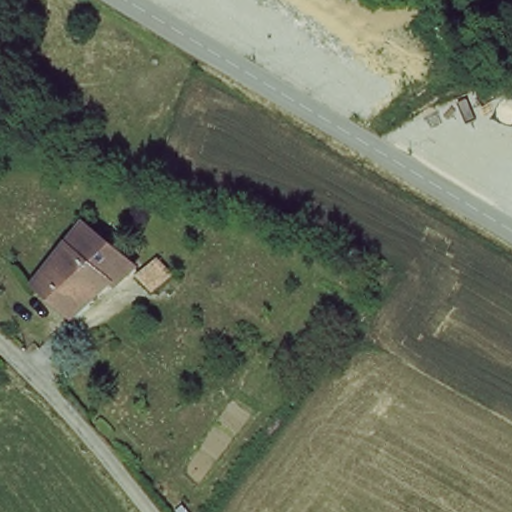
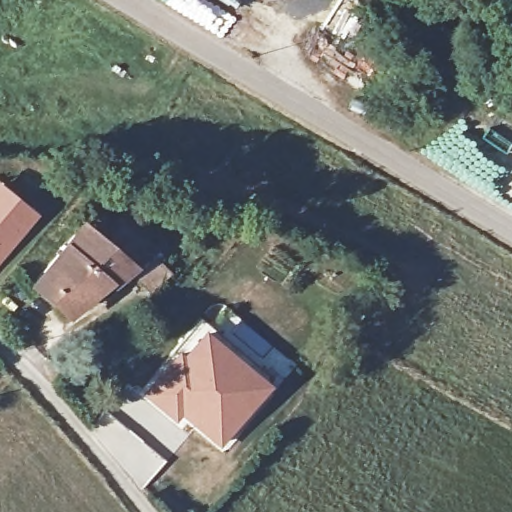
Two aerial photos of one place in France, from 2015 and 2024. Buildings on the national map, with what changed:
new [(38,213),(0,263),(0,182),(38,213)]
unchanged [(78,316),(60,302),(43,288),(86,225),(130,260),(78,316)]
new [(159,258),(173,274),(150,293),(137,277),(159,258)]
new [(139,390),(199,320),(206,326),(223,343),(272,385),(218,448),(193,429),(186,437),(184,436),(176,429),(139,397),(137,392),(139,390)]
new [(126,383),(137,392),(139,397),(127,410),(130,413),(127,415),(122,410),(116,416),(168,459),(142,491),(85,428),(126,383)]

